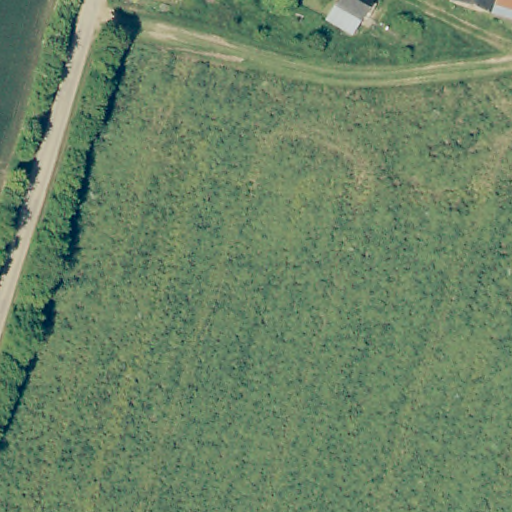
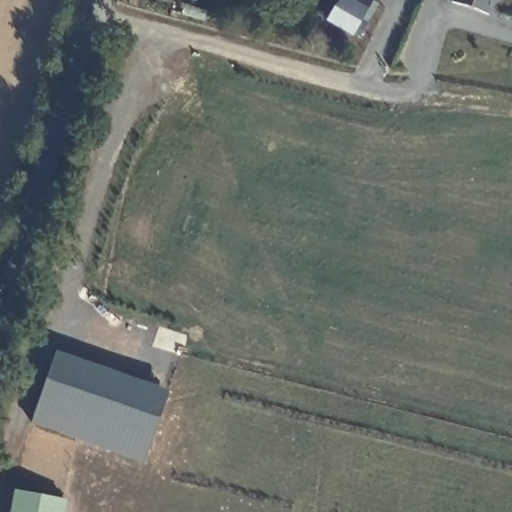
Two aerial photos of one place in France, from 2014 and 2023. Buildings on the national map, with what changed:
unchanged [(355,30),(330,17),(339,0),(369,0),(355,30)]
unchanged [(491,12),(464,0),(496,0),(491,12)]
new [(169,392),(144,463),(30,425),(53,350),(169,392)]
new [(65,512),(9,512),(13,491),(67,501),(65,512)]

